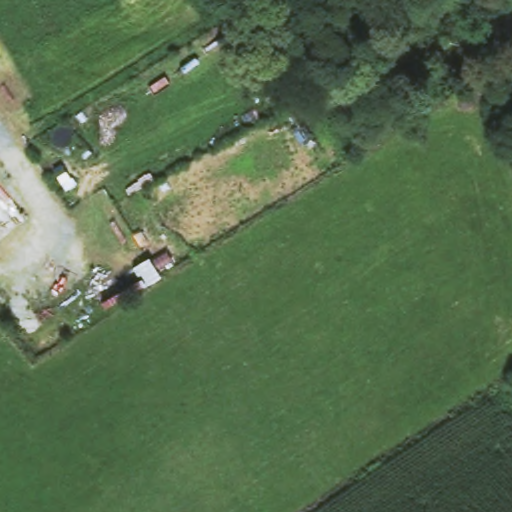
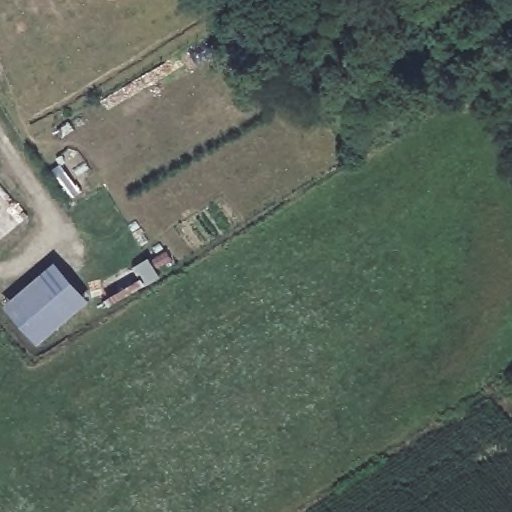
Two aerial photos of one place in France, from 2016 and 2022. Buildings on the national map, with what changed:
new [(56,261),(89,301),(38,346),(5,306),(56,261)]

